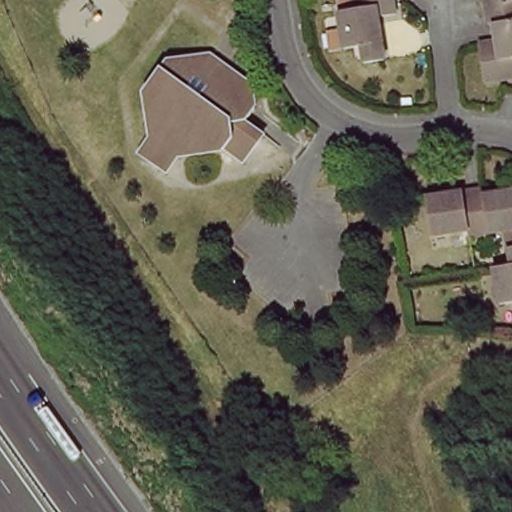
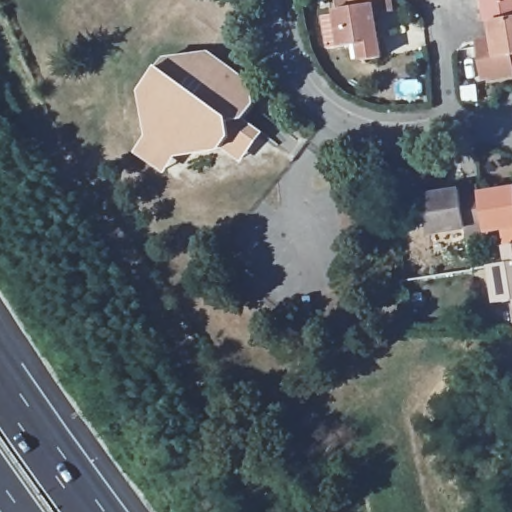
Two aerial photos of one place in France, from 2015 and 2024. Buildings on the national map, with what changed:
unchanged [(345,28),(342,10),(360,7),(359,0),(397,0),(399,11),(381,14),(388,57),(369,61),(366,44),(348,47),(335,49),(331,30),(345,28)]
unchanged [(492,22),(490,9),(489,0),(512,0),(512,18),(497,21),(492,22)]
unchanged [(483,50),(482,42),(487,41),(495,40),(500,39),(497,21),(512,18),(512,74),(488,79),(483,50)]
unchanged [(155,127),(149,83),(170,54),(193,51),(194,57),(210,55),(214,48),(256,78),(259,102),(250,114),(248,115),(266,128),(246,154),(229,142),(228,144),(184,150),(183,149),(171,165),(145,146),(159,127),(155,127)]
unchanged [(430,197),(431,197),(485,188),(486,194),(486,196),(490,221),(492,230),(477,233),(473,234),(472,227),(436,233),(430,197)]
unchanged [(510,227),(492,230),(490,221),(486,196),(486,194),(512,189),(512,242),(510,227)]
unchanged [(497,266),(512,264),(512,302),(503,303),(497,266)]

